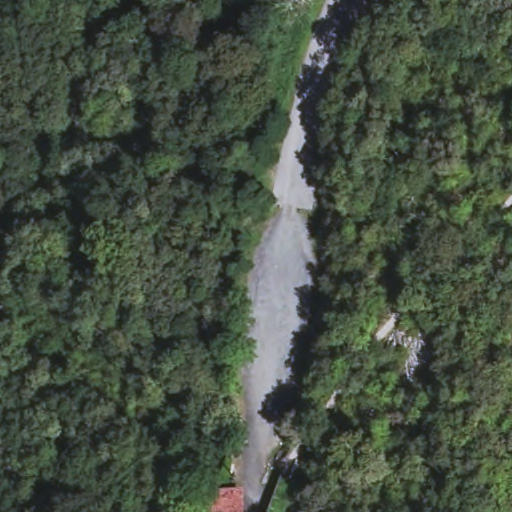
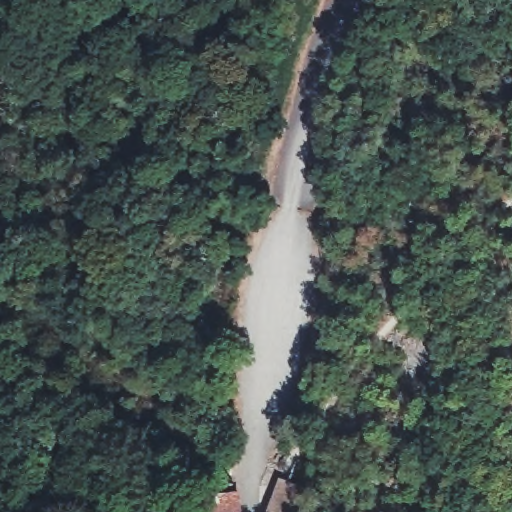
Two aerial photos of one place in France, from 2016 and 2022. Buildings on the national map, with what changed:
unchanged [(202,512),(202,495),(240,494),(239,512),(202,512)]

